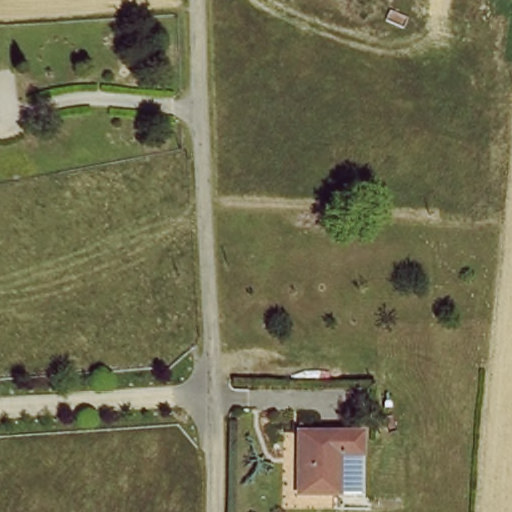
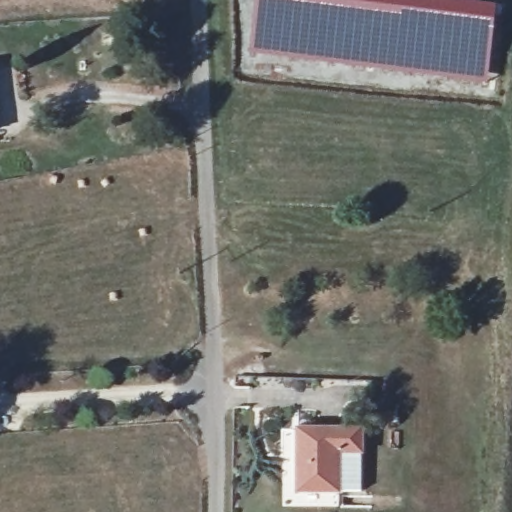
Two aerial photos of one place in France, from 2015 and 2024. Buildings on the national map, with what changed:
new [(255,0),(449,0),(497,6),(487,79),(331,62),(248,56),(255,0)]
unchanged [(365,428),(365,466),(342,467),(342,491),(303,491),(303,430),(365,428)]

